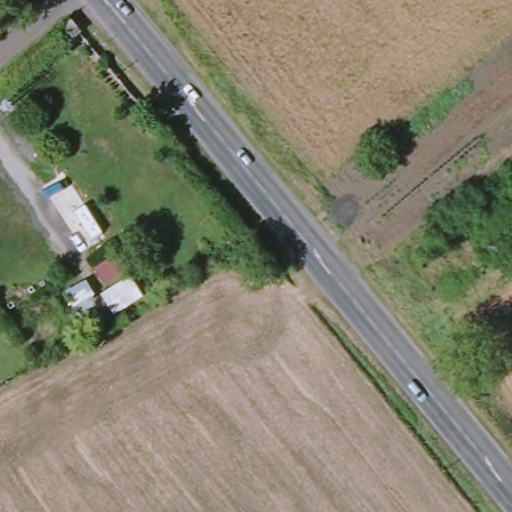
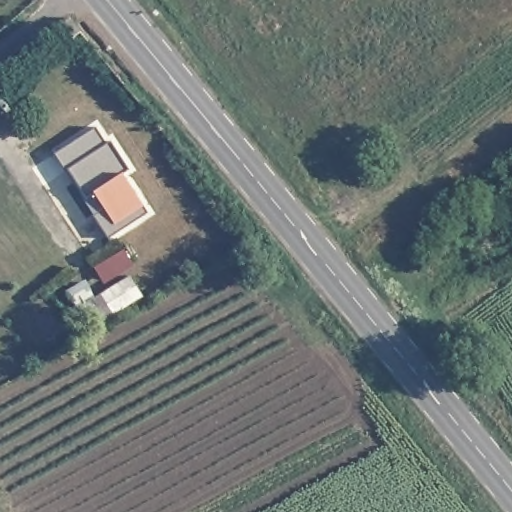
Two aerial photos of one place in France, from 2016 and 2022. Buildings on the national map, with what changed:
unchanged [(69,20),(79,34),(67,44),(56,32),(69,20)]
new [(96,127),(107,145),(111,142),(129,172),(122,176),(146,215),(106,240),(91,217),(102,210),(92,195),(85,200),(67,171),(65,172),(53,154),(96,127)]
unchanged [(145,295),(109,316),(96,296),(72,313),(57,290),(77,276),(92,292),(103,285),(90,265),(110,251),(122,266),(145,295)]

